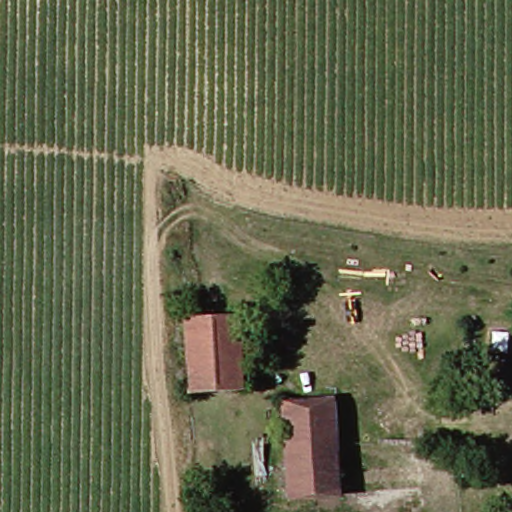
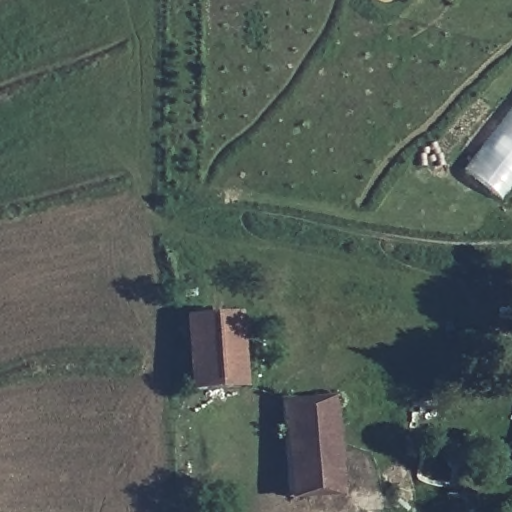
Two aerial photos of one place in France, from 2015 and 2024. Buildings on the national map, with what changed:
new [(466,171),(512,112),(512,189),(502,201),(466,171)]
unchanged [(192,395),(188,323),(236,321),(241,390),(192,395)]
unchanged [(275,409),(332,404),(336,503),(325,505),(285,506),(275,409)]

